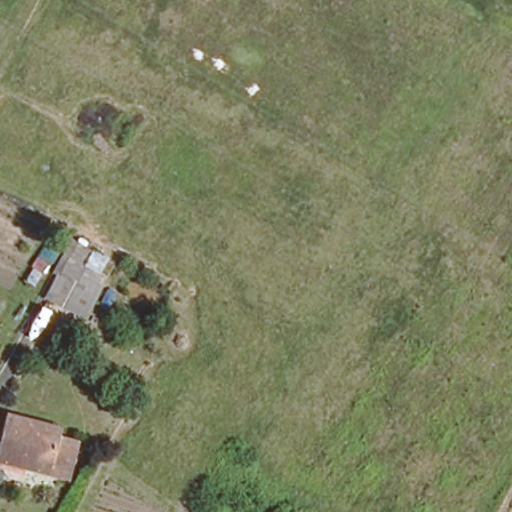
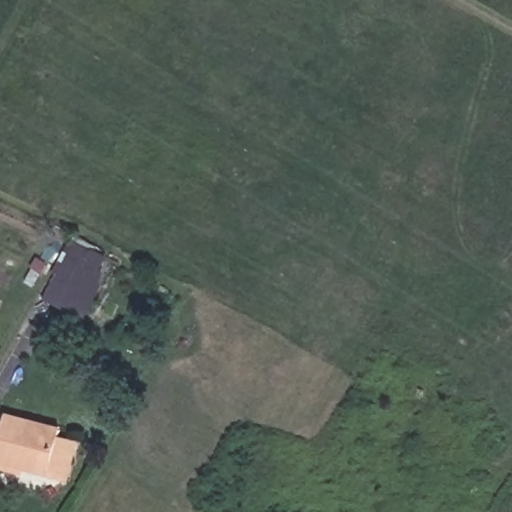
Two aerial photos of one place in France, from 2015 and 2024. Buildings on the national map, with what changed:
unchanged [(69,246),(88,256),(83,266),(100,275),(87,298),(71,290),(59,315),(40,305),(69,246)]
unchanged [(39,486),(0,476),(0,432),(49,446),(66,451),(55,490),(39,486)]

